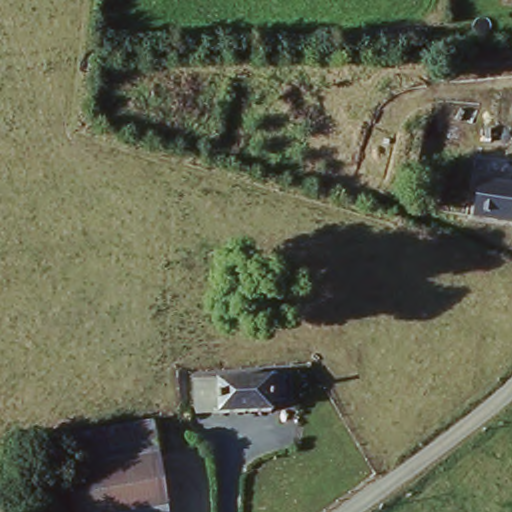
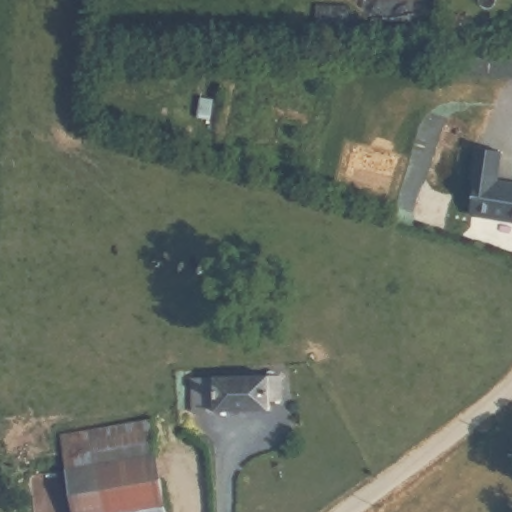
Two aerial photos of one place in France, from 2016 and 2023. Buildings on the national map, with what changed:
unchanged [(512,181),(512,215),(472,208),(473,197),(462,195),(467,172),(512,181)]
unchanged [(227,406),(199,409),(196,375),(285,366),(287,390),(274,391),(277,401),(227,406)]
unchanged [(150,417),(173,512),(79,512),(62,438),(150,417)]

